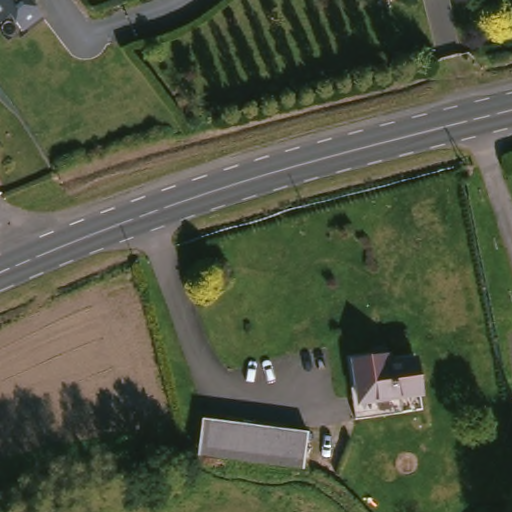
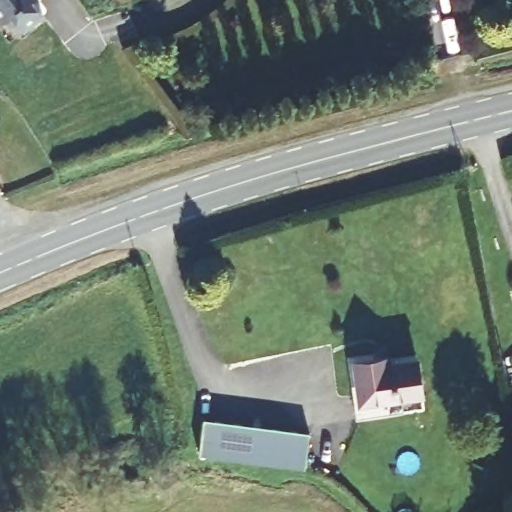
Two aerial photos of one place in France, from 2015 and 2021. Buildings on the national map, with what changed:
unchanged [(31,2),(40,18),(21,32),(8,16),(0,21),(0,0),(33,0),(31,2)]
unchanged [(358,397),(364,396),(359,361),(381,358),(382,365),(422,360),(427,395),(406,397),(408,413),(361,420),(358,397)]
unchanged [(213,413),(320,427),(315,463),(208,450),(213,413)]

